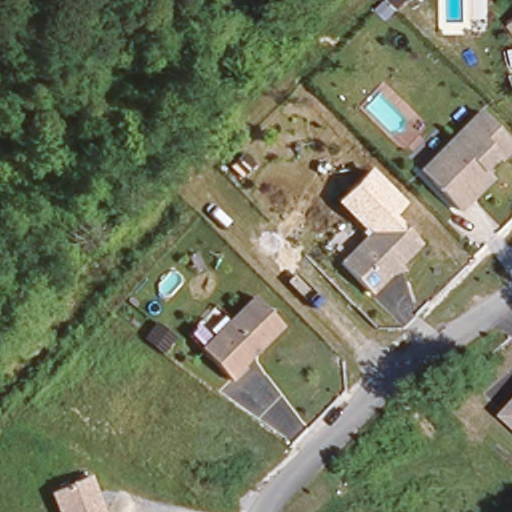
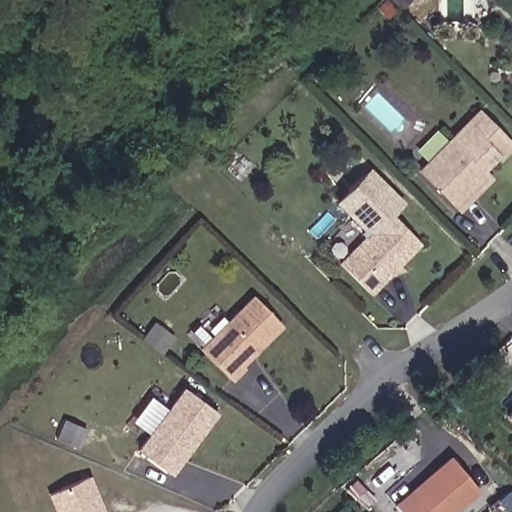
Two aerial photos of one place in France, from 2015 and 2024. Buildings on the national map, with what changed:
new [(382,7),(390,0),(397,0),(403,7),(393,17),(382,7)]
new [(414,0),(406,8),(397,0),(414,0)]
unchanged [(512,142),(512,148),(500,162),(496,159),(483,171),(493,180),(459,210),(418,168),(478,108),(512,142)]
unchanged [(368,167),(404,203),(391,215),(386,209),(365,232),(334,202),(368,167)]
unchanged [(365,232),(386,209),(391,215),(419,244),(369,291),(336,261),(365,232)]
unchanged [(281,325),(242,364),(245,369),(232,382),(198,346),(252,293),(281,325)]
new [(161,352),(142,339),(153,324),(172,338),(161,352)]
new [(212,411),(168,473),(137,451),(181,388),(212,411)]
unchanged [(503,415),(512,407),(512,424),(503,415)]
new [(454,512),(396,512),(393,508),(448,457),(478,490),(454,512)]
unchanged [(103,512),(53,512),(45,494),(87,476),(103,512)]

